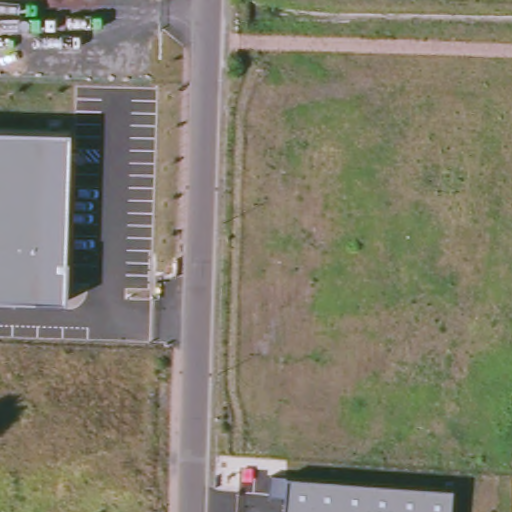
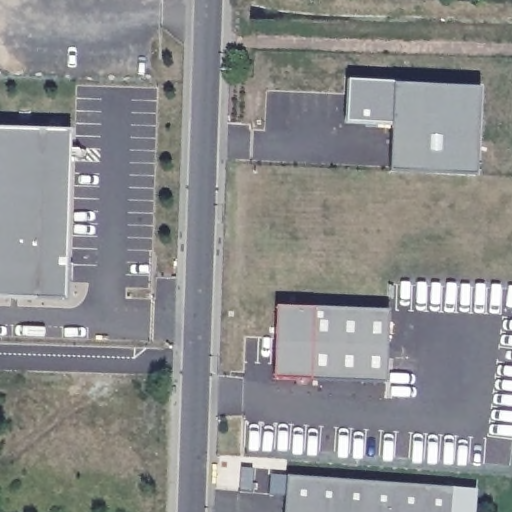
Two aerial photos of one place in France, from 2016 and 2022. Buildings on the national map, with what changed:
new [(351,70),(397,71),(397,72),(483,74),(480,167),(393,163),(395,115),(350,113),(351,70)]
unchanged [(70,133),(63,303),(0,300),(0,131),(70,133)]
new [(386,383),(274,379),(276,306),(389,310),(386,383)]
unchanged [(453,489),(451,512),(284,512),(285,495),(270,493),(271,474),(453,489)]

